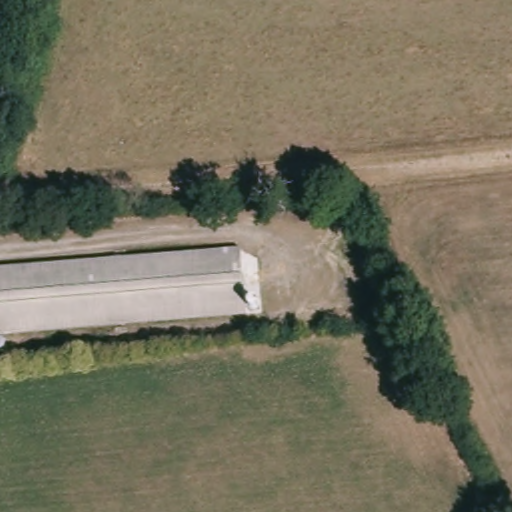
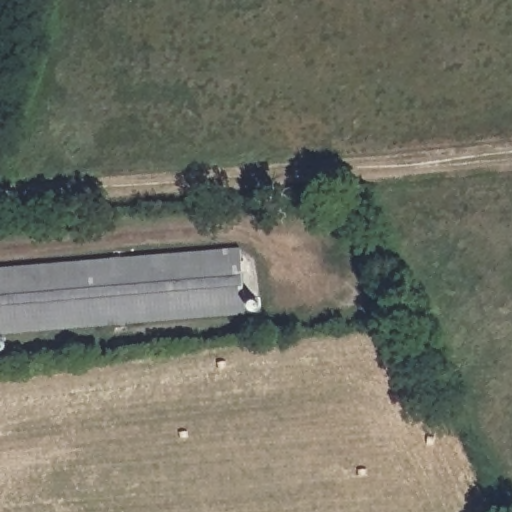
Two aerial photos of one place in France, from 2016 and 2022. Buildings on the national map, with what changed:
unchanged [(248,317),(0,337),(0,272),(243,252),(248,317)]

